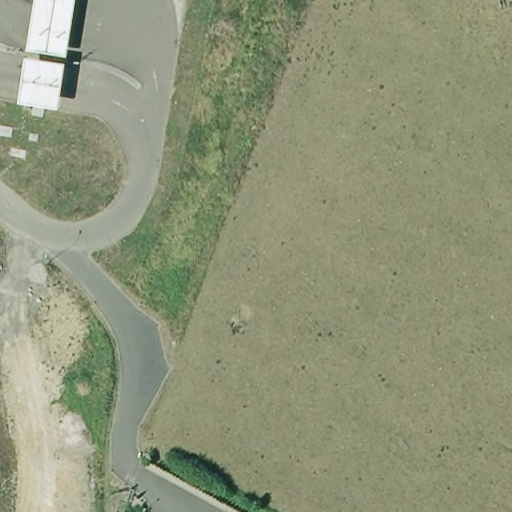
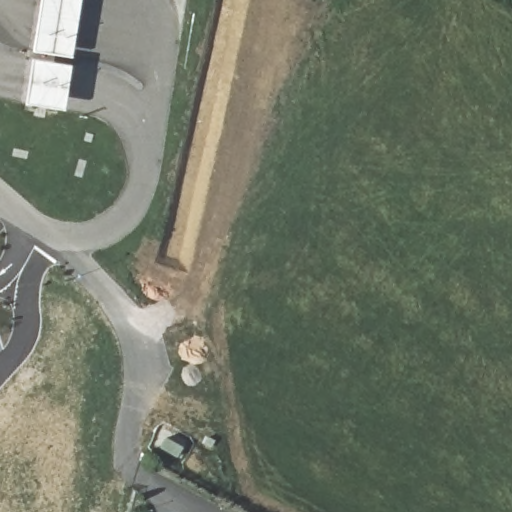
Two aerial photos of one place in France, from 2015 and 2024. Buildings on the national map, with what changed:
unchanged [(19,105),(36,0),(75,0),(60,110),(19,105)]

